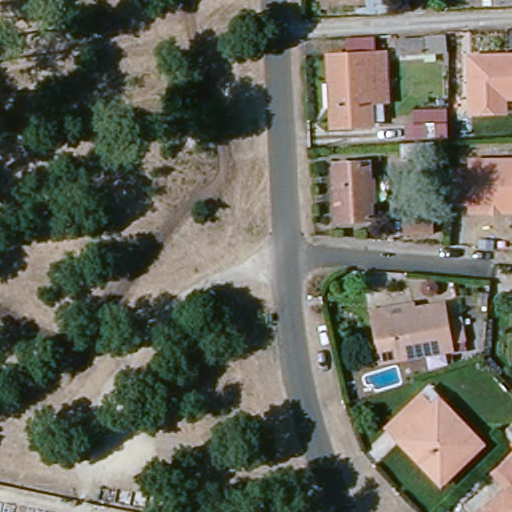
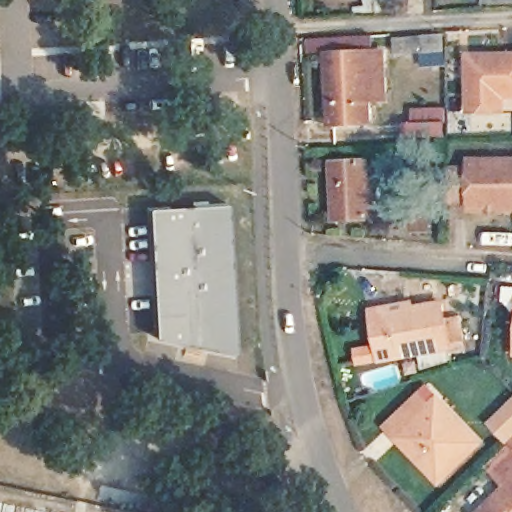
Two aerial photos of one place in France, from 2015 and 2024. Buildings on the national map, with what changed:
unchanged [(512,1),(489,2),(480,3),(480,0),(512,0),(512,1)]
unchanged [(400,63),(398,41),(449,40),(452,60),(400,63)]
unchanged [(512,56),(512,96),(506,96),(507,112),(475,113),(471,58),(512,56)]
unchanged [(360,106),(361,126),(321,127),(319,61),(363,59),(376,58),(377,74),(378,105),(360,106)]
unchanged [(436,146),(438,176),(404,177),(404,145),(421,144),(421,123),(449,123),(451,144),(436,146)]
unchanged [(366,222),(331,224),(329,169),(363,167),(366,222)]
unchanged [(470,211),(450,211),(450,180),(470,180),(470,171),(512,170),(512,220),(470,220),(470,211)]
new [(226,204),(235,354),(154,337),(148,208),(226,204)]
unchanged [(429,215),(431,230),(407,234),(404,219),(429,215)]
unchanged [(457,348),(441,352),(373,365),(364,317),(402,310),(403,315),(433,311),(436,328),(453,325),(457,348)]
unchanged [(427,406),(435,400),(476,443),(436,481),(385,427),(418,396),(427,406)]
new [(489,424),(512,403),(512,443),(511,445),(489,424)]
new [(507,449),(512,443),(512,484),(501,495),(481,474),(507,449)]
demolished [(512,454),(507,449),(512,443),(512,454)]
unchanged [(512,484),(512,512),(483,512),(501,495),(512,484)]

